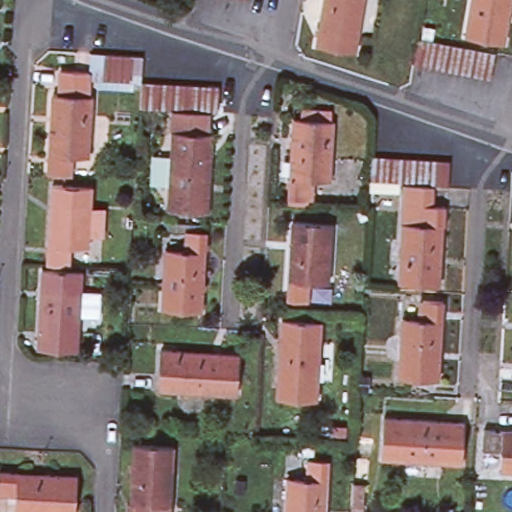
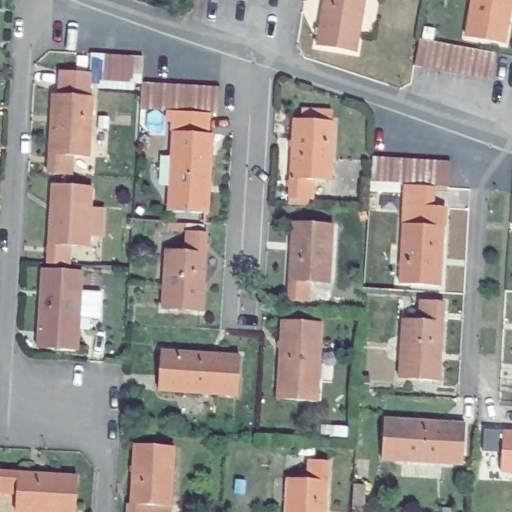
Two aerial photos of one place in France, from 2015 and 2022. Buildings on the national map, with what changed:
unchanged [(245,0),(248,0),(248,1),(245,0)]
unchanged [(365,0),(357,50),(320,44),(326,0),(365,0)]
unchanged [(468,35),(474,0),(512,0),(512,11),(507,42),(468,35)]
unchanged [(487,76),(474,73),(462,71),(448,69),(436,67),(422,65),(427,39),(440,41),(452,43),(466,46),(478,47),(492,50),(505,52),(501,77),(487,76)]
unchanged [(90,78),(91,57),(104,59),(117,60),(130,61),(143,61),(142,86),(128,85),(116,84),(104,84),(90,82),(88,102),(95,103),(92,160),(72,159),(71,179),(51,177),(56,100),(59,101),(61,76),(90,78)]
unchanged [(142,86),(155,87),(168,87),(180,89),(194,89),(207,90),(221,91),(219,117),(210,117),(209,140),(214,140),(209,219),(170,216),(176,137),(177,115),(167,114),(154,113),(140,112),(142,86)]
unchanged [(290,114),(328,115),(326,175),(307,174),(306,192),(287,191),(290,114)]
unchanged [(401,219),(403,179),(392,179),(381,177),(368,177),(370,151),(382,152),(395,152),(407,154),(420,155),(431,155),(443,156),(441,181),(429,181),(427,202),(439,203),(435,280),(397,277),(401,219)]
unchanged [(55,186),(92,189),(88,247),(71,246),(69,265),(49,264),(55,186)]
unchanged [(312,277),(311,297),(291,295),(297,217),(335,219),(331,278),(312,277)]
unchanged [(207,231),(202,308),(164,306),(167,247),(187,249),(188,230),(207,231)]
unchanged [(44,271),(85,272),(81,351),(40,349),(44,271)]
unchanged [(446,379),(407,377),(411,318),(430,320),(431,301),(451,302),(446,379)]
unchanged [(324,323),(319,400),(280,397),(285,321),(324,323)]
unchanged [(245,355),(242,394),(164,389),(166,349),(245,355)]
unchanged [(464,463),(386,460),(387,420),(465,423),(464,463)]
unchanged [(509,465),(510,446),(490,445),(490,425),(512,426),(512,465),(509,465)]
unchanged [(139,445),(177,446),(174,505),(173,512),(136,512),(139,445)]
unchanged [(296,473),(315,475),(317,454),(335,456),(331,512),(292,512),(296,473)]
unchanged [(80,512),(21,508),(22,489),(3,488),(5,467),(82,472),(80,512)]

